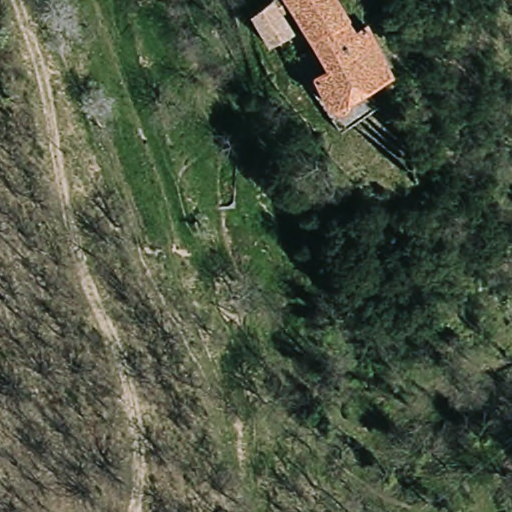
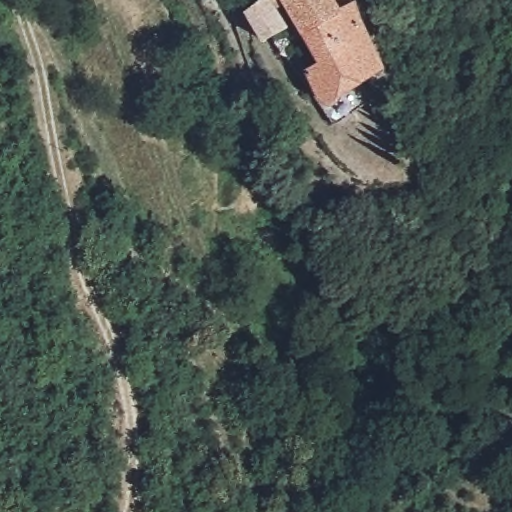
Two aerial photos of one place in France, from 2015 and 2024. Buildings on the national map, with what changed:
unchanged [(354,31),(366,25),(381,69),(336,100),(314,71),(330,55),(289,2),(275,12),(289,31),(274,43),(249,9),(262,0),(332,0),(354,31)]

